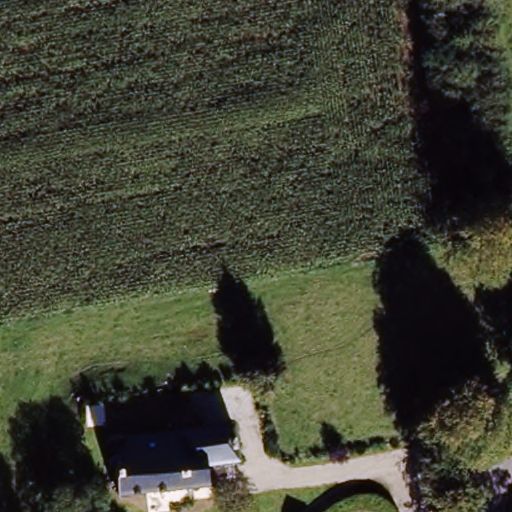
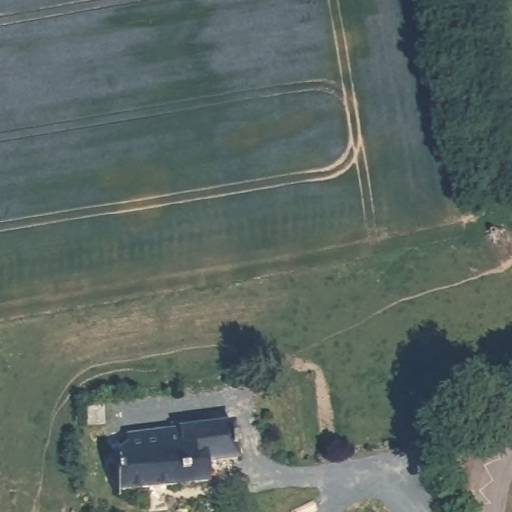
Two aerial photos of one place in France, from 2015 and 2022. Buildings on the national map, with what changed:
unchanged [(117,482),(112,480),(108,460),(130,445),(130,436),(235,427),(239,463),(210,466),(212,485),(119,494),(117,482)]

